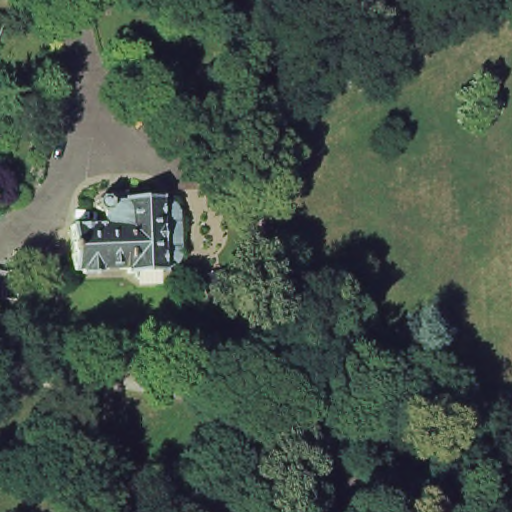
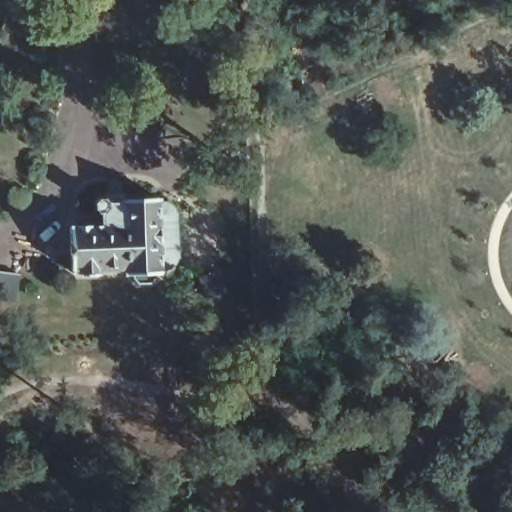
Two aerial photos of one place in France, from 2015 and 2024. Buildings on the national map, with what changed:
unchanged [(153,202),(153,221),(154,244),(156,267),(156,268),(156,274),(150,274),(150,279),(145,283),(132,284),(128,278),(128,274),(121,274),(121,270),(93,270),(93,274),(73,275),(73,271),(66,271),(64,253),(63,225),(96,224),(96,211),(91,211),(88,208),(88,204),(93,198),(98,198),(102,202),(116,202),(116,199),(128,199),(128,198),(143,197),(143,199),(153,198),(153,202)]
unchanged [(157,202),(158,205),(162,204),(166,206),(168,210),(168,214),(171,214),(173,255),(169,255),(168,260),(164,265),(159,266),(159,268),(156,268),(156,267),(154,244),(153,221),(153,202),(157,202)]
unchanged [(0,298),(0,272),(20,274),(16,300),(0,298)]

